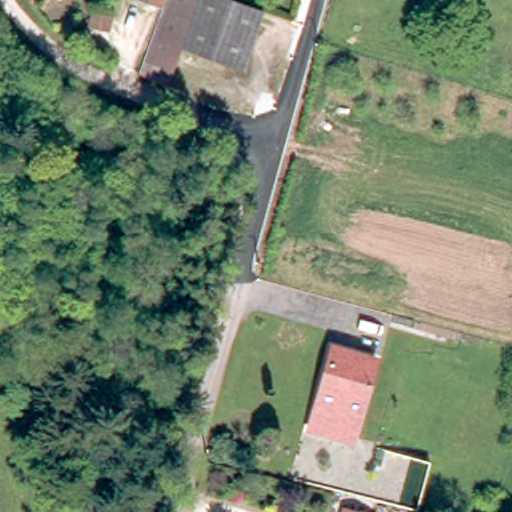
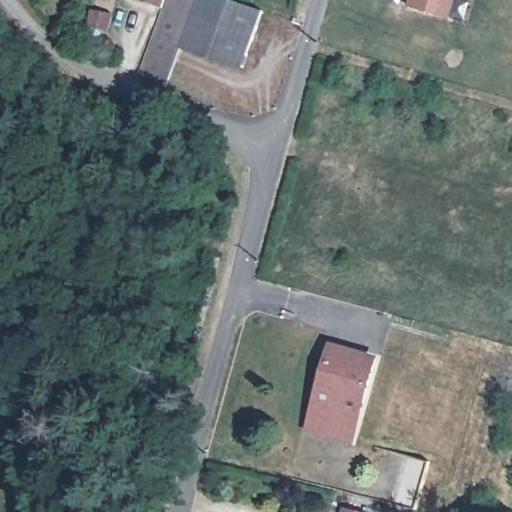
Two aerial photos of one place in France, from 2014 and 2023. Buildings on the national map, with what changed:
unchanged [(168,87),(141,74),(164,7),(166,0),(234,0),(263,11),(243,67),(183,46),(168,87)]
unchanged [(166,0),(164,7),(145,0),(166,0)]
new [(408,5),(410,0),(455,0),(450,19),(408,5)]
unchanged [(332,435),(310,428),(332,347),(375,359),(357,427),(353,440),(332,435)]
unchanged [(412,457),(430,462),(417,510),(399,505),(412,457)]
new [(345,509),(357,512),(344,512),(345,509)]

